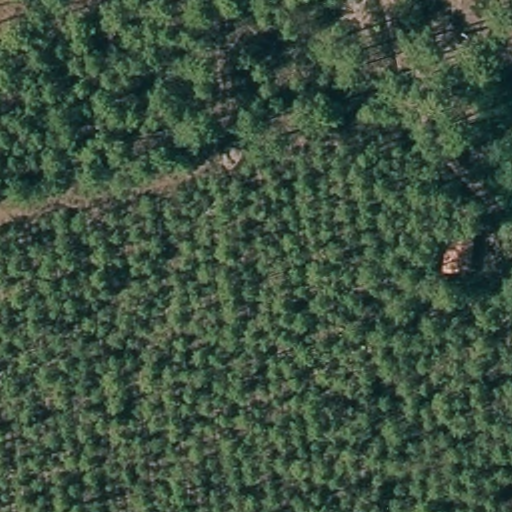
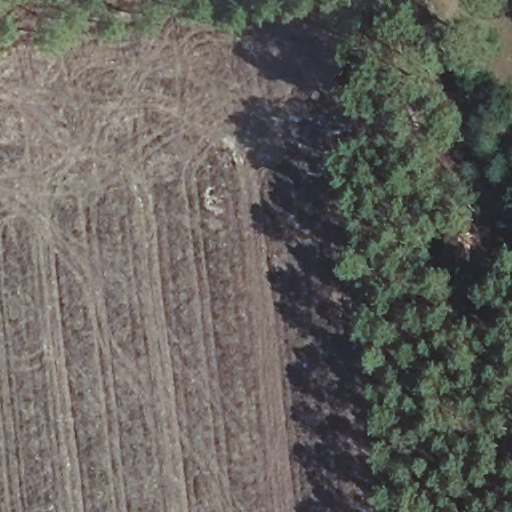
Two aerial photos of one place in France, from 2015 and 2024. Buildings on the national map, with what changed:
unchanged [(447,228),(475,230),(470,274),(442,272),(447,228)]

